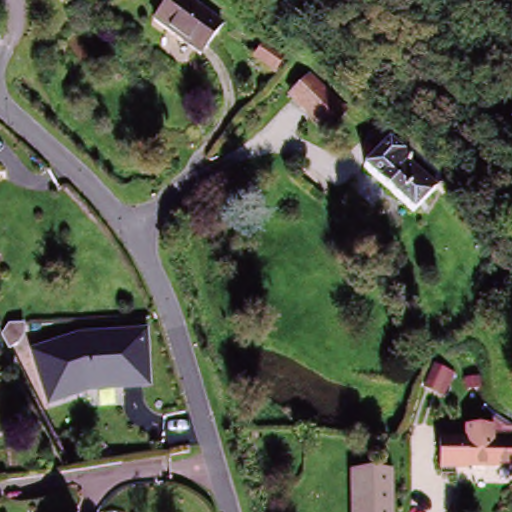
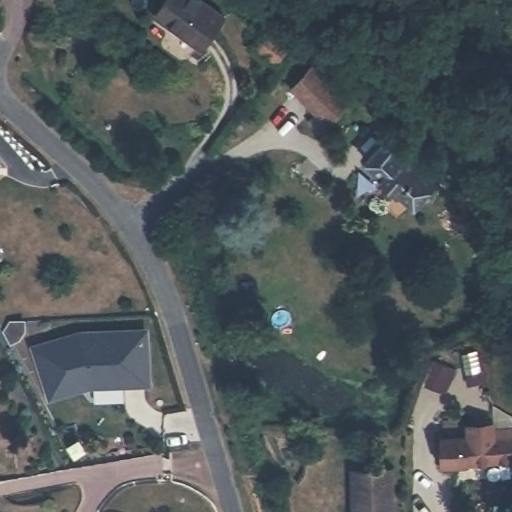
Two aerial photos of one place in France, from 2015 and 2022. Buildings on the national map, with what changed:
unchanged [(202,52),(155,17),(169,0),(195,0),(225,22),(202,52)]
unchanged [(505,20),(496,10),(506,0),(508,0),(512,4),(512,14),(505,20)]
unchanged [(327,128),(291,92),(311,74),(347,109),(327,128)]
unchanged [(430,186),(432,187),(408,211),(360,164),(386,138),(389,141),(395,136),(438,179),(430,186)]
unchanged [(77,330),(150,327),(153,385),(97,387),(48,402),(30,345),(77,330)]
unchanged [(455,398),(450,396),(430,387),(440,365),(460,372),(465,375),(455,398)]
unchanged [(438,470),(438,468),(437,441),(440,441),(440,424),(442,424),(465,423),(465,427),(490,427),(490,435),(512,434),(512,465),(466,466),(466,467),(453,468),(453,473),(438,473),(438,470)]
unchanged [(397,470),(396,512),(357,512),(358,470),(397,470)]

